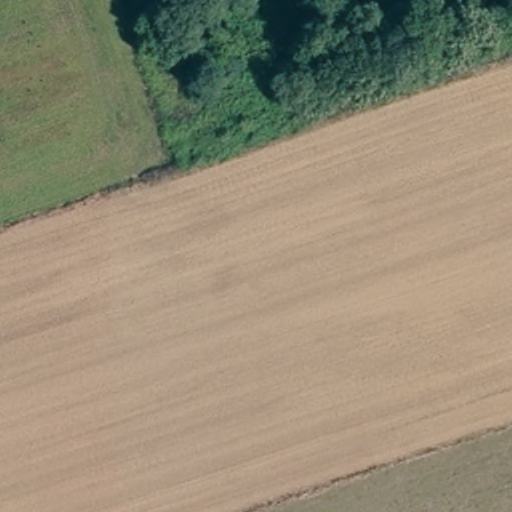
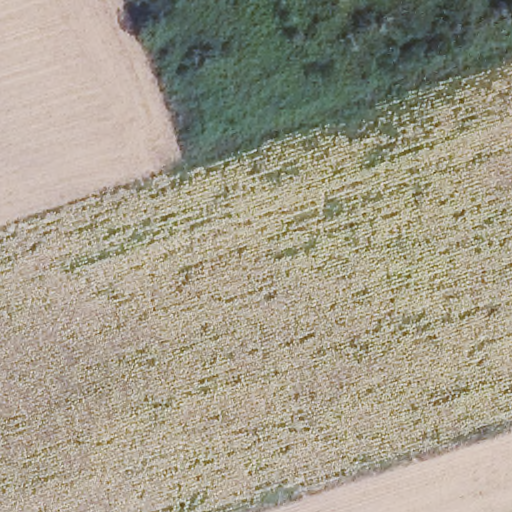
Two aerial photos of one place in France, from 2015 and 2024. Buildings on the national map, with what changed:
[]

